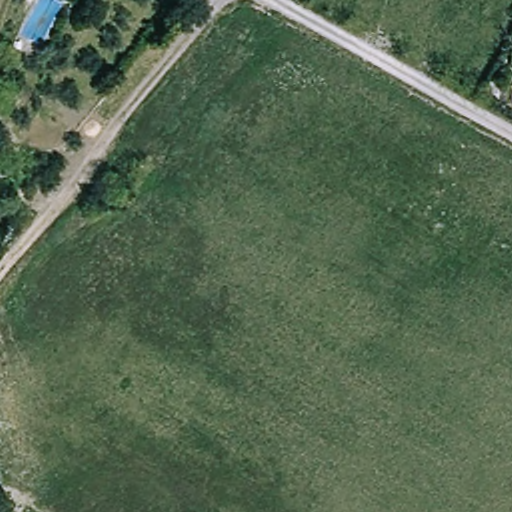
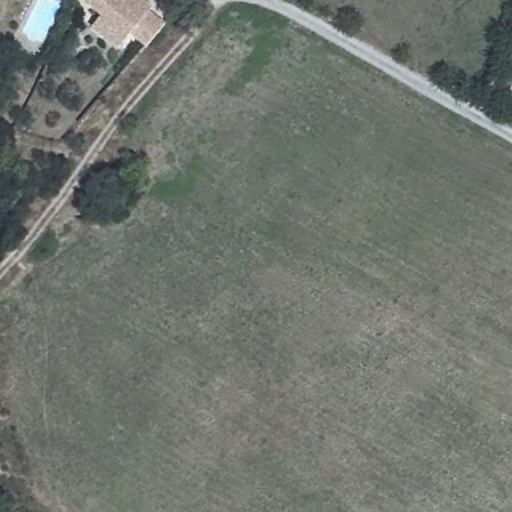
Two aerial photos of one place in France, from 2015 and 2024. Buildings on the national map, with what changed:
new [(81,0),(143,0),(151,6),(148,10),(164,23),(146,45),(130,32),(127,36),(118,48),(91,27),(100,15),(81,0)]

